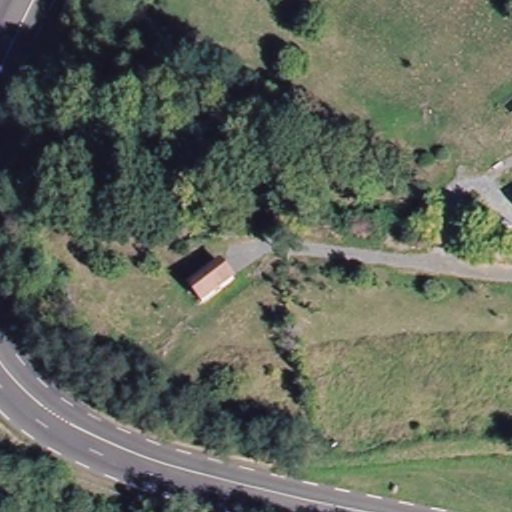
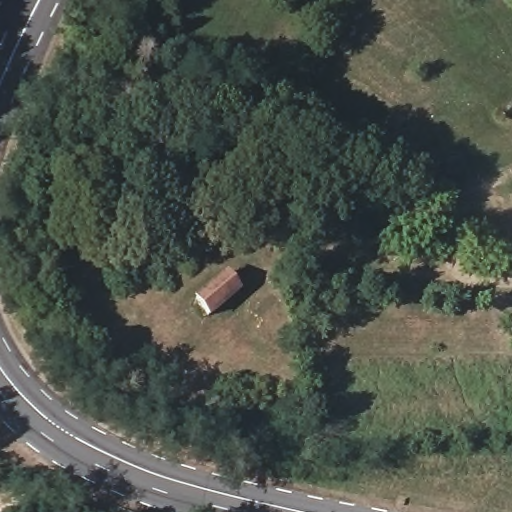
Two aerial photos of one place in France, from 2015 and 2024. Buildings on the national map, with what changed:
unchanged [(190,299),(223,267),(215,253),(229,238),(261,268),(212,322),(190,299)]

